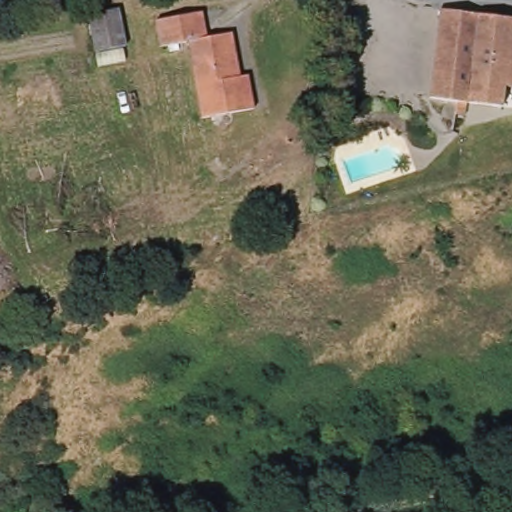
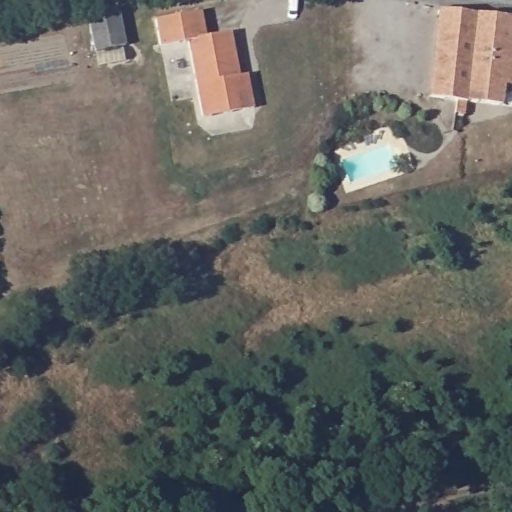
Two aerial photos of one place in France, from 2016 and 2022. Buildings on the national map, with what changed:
unchanged [(88,13),(120,6),(130,44),(96,54),(88,13)]
unchanged [(442,10),(512,17),(512,109),(433,98),(442,10)]
unchanged [(204,15),(210,38),(233,34),(242,77),(249,77),(256,111),(207,122),(190,47),(166,52),(160,24),(204,15)]

